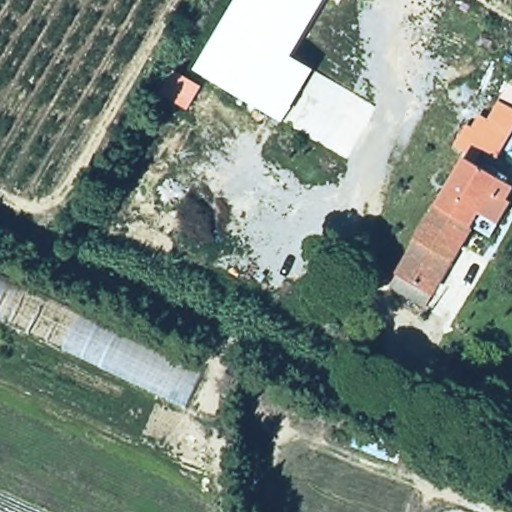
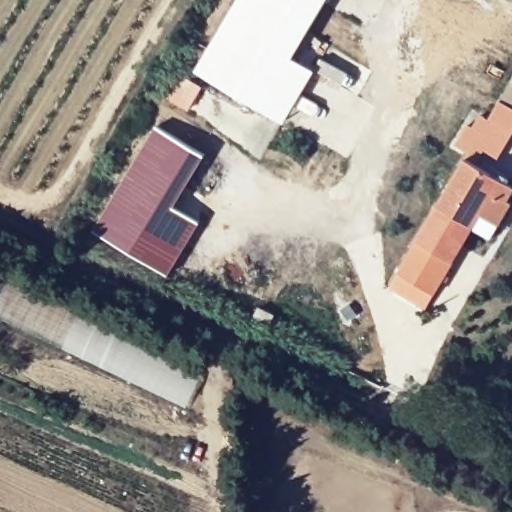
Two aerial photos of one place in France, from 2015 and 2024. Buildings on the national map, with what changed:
unchanged [(236,0),(327,0),(292,59),(316,71),(285,121),(196,70),(236,0)]
unchanged [(502,93),(512,75),(512,98),(502,93)]
unchanged [(462,156),(466,151),(459,146),(470,126),(472,127),(480,114),(489,118),(502,93),(512,98),(512,136),(492,174),(462,156)]
new [(205,154),(174,206),(200,222),(167,276),(92,229),(156,125),(205,154)]
unchanged [(389,287),(462,156),(492,174),(512,185),(512,189),(507,199),(512,202),(505,217),(500,227),(480,218),(429,310),(389,287)]

